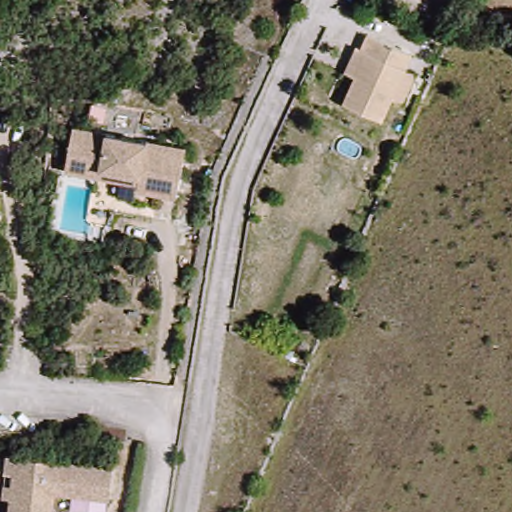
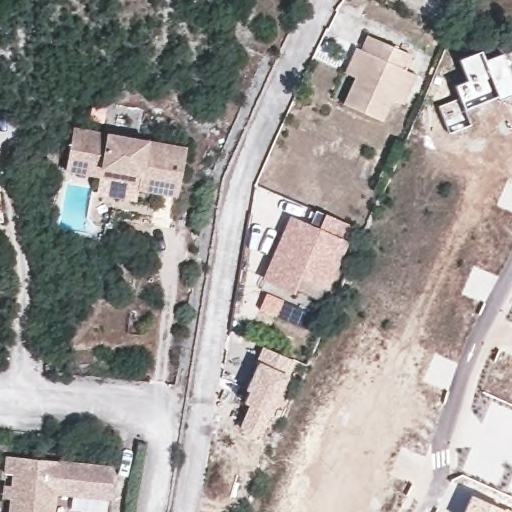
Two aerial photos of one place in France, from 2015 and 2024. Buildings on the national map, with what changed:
unchanged [(412,64),(382,129),(346,112),(355,92),(340,85),(352,60),(361,62),(370,44),(412,64)]
new [(457,97),(453,86),(466,79),(458,60),(480,51),(485,60),(502,54),(512,79),(512,94),(498,100),(497,96),(463,109),(470,125),(448,133),(438,106),(457,97)]
unchanged [(77,180),(84,134),(182,147),(175,194),(150,192),(148,187),(110,183),(77,180)]
new [(355,227),(328,291),(322,288),(318,300),(295,290),(293,293),(261,280),(287,216),(318,228),(325,215),(355,227)]
new [(249,406),(241,402),(265,348),(294,361),(260,437),(240,428),(249,406)]
unchanged [(115,472),(110,501),(56,498),(55,512),(12,512),(13,501),(5,502),(7,473),(8,462),(115,472)]
new [(504,509),(505,508),(512,512),(461,512),(469,496),(504,509)]

